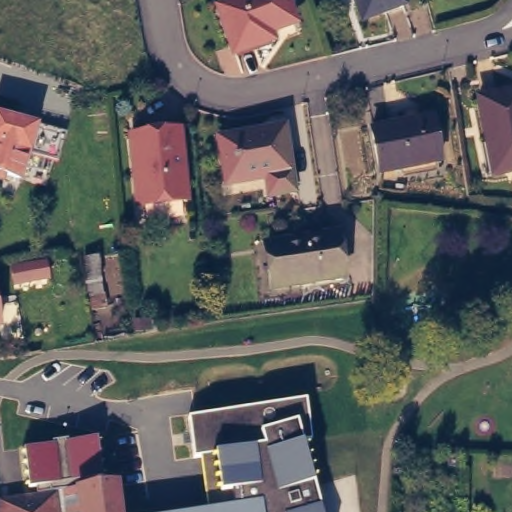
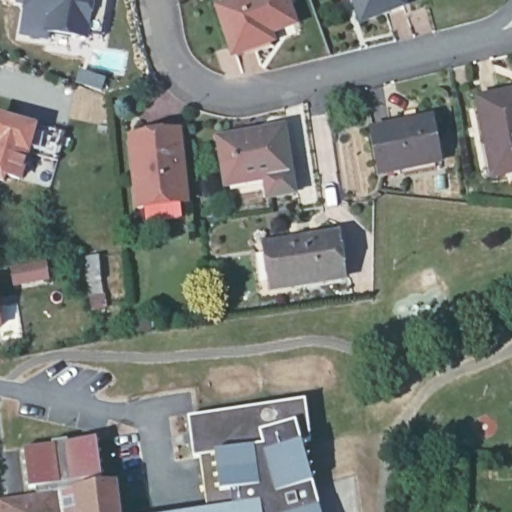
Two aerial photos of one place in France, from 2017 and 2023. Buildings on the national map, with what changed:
new [(49,34),(48,40),(19,34),(26,4),(17,2),(18,0),(96,0),(87,41),(49,34)]
unchanged [(240,44),(222,2),(227,0),(293,0),(300,15),(274,24),(277,32),(262,37),(240,44)]
unchanged [(365,15),(359,0),(407,0),(408,3),(365,15)]
unchanged [(512,90),(512,167),(505,168),(488,95),(512,90)]
unchanged [(445,109),(454,153),(394,162),(385,119),(445,109)]
unchanged [(47,127),(32,177),(23,174),(20,179),(3,173),(5,168),(0,166),(0,140),(2,135),(0,134),(0,121),(1,118),(6,120),(8,114),(47,127)]
unchanged [(178,120),(191,193),(186,193),(188,205),(181,212),(156,215),(149,208),(147,198),(141,198),(137,172),(140,171),(132,127),(178,120)]
unchanged [(285,126),(297,190),(275,193),(270,172),(230,177),(220,134),(285,126)]
unchanged [(335,230),(342,272),(273,282),(265,239),(335,230)]
unchanged [(0,284),(0,267),(7,266),(10,270),(11,274),(17,273),(19,281),(12,282),(0,284)]
unchanged [(162,318),(163,329),(152,331),(150,320),(162,318)]
unchanged [(198,457),(192,458),(187,418),(304,401),(310,443),(302,447),(321,512),(258,512),(257,507),(219,512),(208,512),(198,457)]
unchanged [(96,438),(102,483),(75,487),(31,492),(24,446),(96,438)]
unchanged [(75,487),(102,483),(112,482),(114,512),(78,512),(75,487)]
unchanged [(31,492),(75,487),(78,512),(0,512),(0,496),(6,495),(31,492)]
unchanged [(257,507),(258,512),(219,512),(257,507)]

